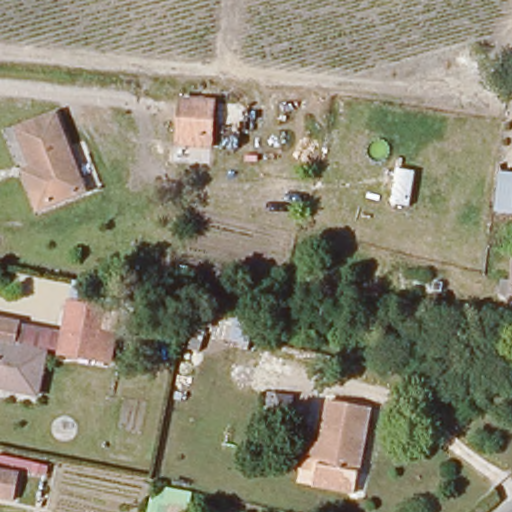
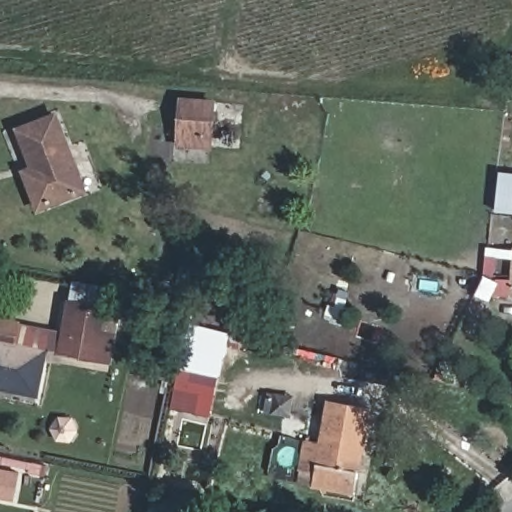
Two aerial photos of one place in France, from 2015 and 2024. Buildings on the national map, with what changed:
unchanged [(211,143),(177,141),(180,99),(215,102),(211,143)]
unchanged [(82,195),(37,214),(21,173),(32,168),(19,131),(57,116),(82,195)]
unchanged [(512,210),(494,207),(493,181),(512,182),(512,210)]
unchanged [(510,249),(512,249),(512,296),(507,295),(510,249)]
demolished [(446,284),(442,297),(408,292),(412,276),(446,284)]
unchanged [(102,312),(100,360),(65,358),(68,310),(102,312)]
unchanged [(226,313),(263,321),(261,344),(249,341),(246,351),(220,348),(226,313)]
unchanged [(0,392),(0,319),(12,321),(46,326),(42,353),(34,398),(0,392)]
new [(217,378),(210,418),(167,409),(175,371),(217,378)]
unchanged [(291,399),(287,418),(268,415),(270,396),(291,399)]
unchanged [(316,441),(325,404),(369,411),(352,472),(313,465),(312,474),(293,471),(301,439),(316,441)]
unchanged [(5,469),(19,472),(12,507),(0,505),(0,467),(5,469)]

